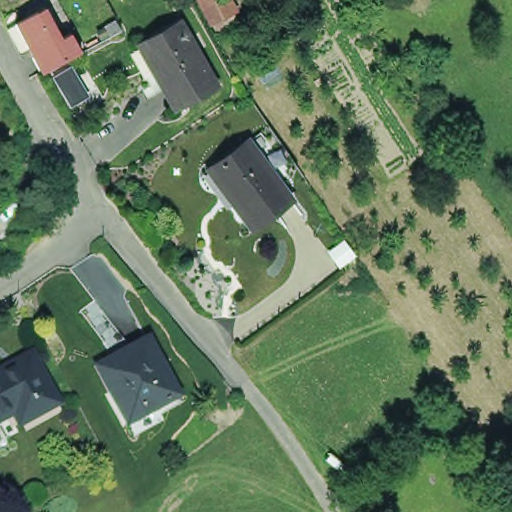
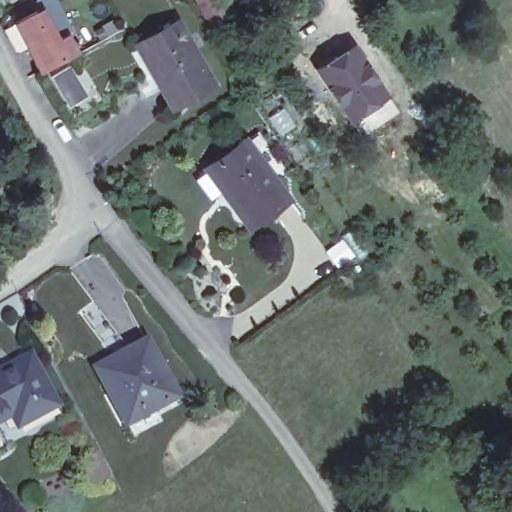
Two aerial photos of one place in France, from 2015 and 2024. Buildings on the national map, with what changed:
unchanged [(224,0),(228,8),(208,18),(199,0),(224,0)]
unchanged [(72,30),(82,48),(45,68),(32,47),(22,52),(8,25),(17,20),(38,9),(55,39),(72,30)]
unchanged [(103,25),(115,17),(120,27),(118,29),(107,34),(103,25)]
unchanged [(138,45),(177,22),(212,83),(172,105),(138,45)]
new [(359,39),(396,96),(349,128),(315,68),(359,39)]
unchanged [(205,170),(242,141),(286,196),(248,225),(205,170)]
unchanged [(146,334),(177,391),(125,419),(95,362),(146,334)]
unchanged [(0,414),(0,366),(27,351),(53,401),(35,411),(15,421),(8,410),(0,414)]

